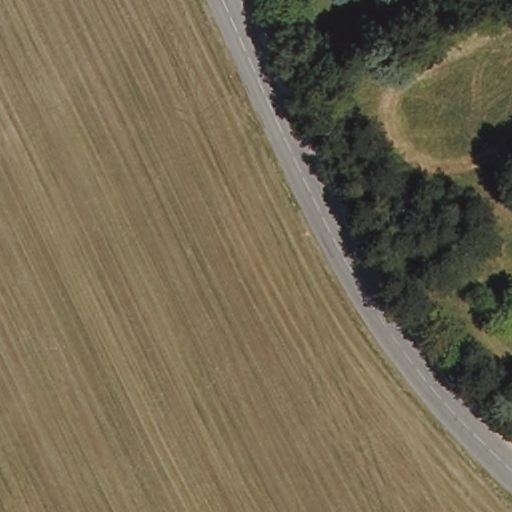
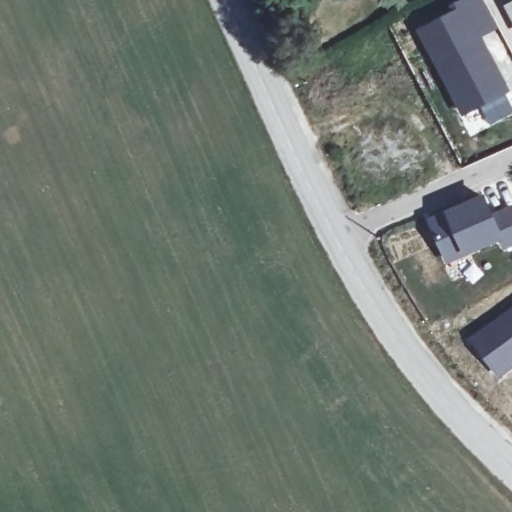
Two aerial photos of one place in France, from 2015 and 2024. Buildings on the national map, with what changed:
new [(452,3),(457,0),(483,0),(498,29),(484,36),(512,91),(507,93),(512,103),(512,114),(490,125),(480,108),(462,115),(416,29),(454,8),(452,3)]
new [(512,0),(512,21),(503,5),(512,0)]
new [(495,211),(512,203),(512,246),(503,251),(498,242),(446,263),(425,217),(486,191),(495,211)]
new [(498,379),(468,337),(512,305),(512,370),(498,379)]

